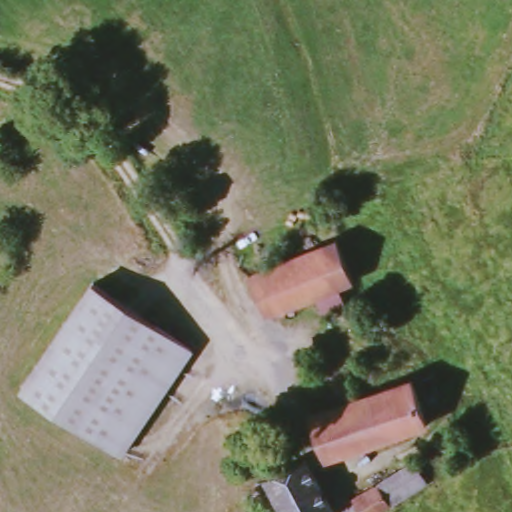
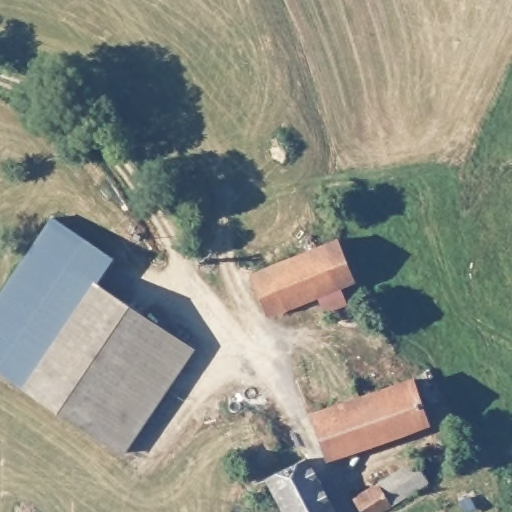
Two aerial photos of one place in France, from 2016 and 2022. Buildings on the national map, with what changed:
new [(0,292),(51,216),(112,257),(95,285),(25,388),(0,371),(0,292)]
unchanged [(338,287),(342,302),(324,309),(318,295),(281,308),(276,296),(266,300),(252,270),(329,241),(334,239),(352,282),(349,284),(338,287)]
unchanged [(95,285),(194,353),(124,456),(25,388),(95,285)]
unchanged [(314,417),(417,381),(432,428),(333,463),(314,417)]
unchanged [(333,512),(285,512),(267,477),(305,458),(333,512)]
unchanged [(398,473),(418,461),(430,482),(432,486),(415,495),(412,498),(385,512),(362,512),(354,499),(398,473)]

